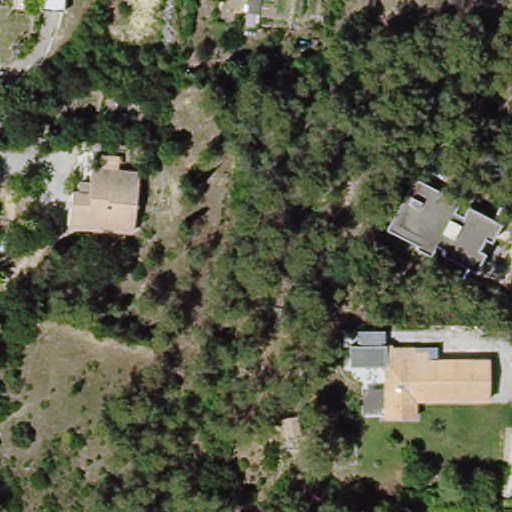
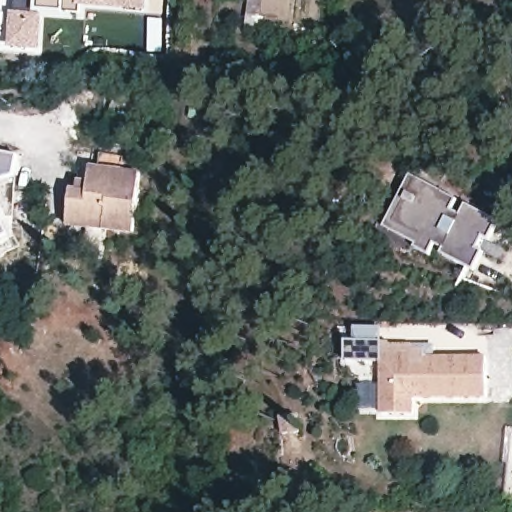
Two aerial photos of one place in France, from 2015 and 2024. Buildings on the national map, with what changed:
new [(80,6),(78,11),(65,9),(64,14),(41,12),(40,52),(8,50),(10,15),(15,14),(16,0),(147,0),(146,10),(80,6)]
demolished [(37,9),(37,0),(62,0),(61,10),(37,9)]
unchanged [(212,1),(211,24),(203,24),(205,0),(212,1)]
unchanged [(213,0),(228,0),(227,2),(212,1),(213,0)]
unchanged [(245,14),(247,0),(260,0),(258,14),(245,14)]
new [(19,157),(15,178),(0,182),(0,154),(19,157)]
unchanged [(67,215),(70,189),(75,189),(77,179),(87,181),(90,166),(137,172),(129,232),(101,229),(67,225),(67,215)]
unchanged [(453,212),(461,215),(467,206),(498,223),(488,242),(483,239),(478,250),(482,254),(472,272),(440,255),(442,252),(434,246),(429,254),(413,249),(415,246),(384,229),(411,177),(420,182),(457,200),(453,212)]
new [(9,236),(0,240),(0,218),(9,236)]
unchanged [(505,327),(512,327),(512,343),(504,343),(505,327)]
unchanged [(389,423),(389,371),(353,371),(353,351),(395,351),(395,352),(418,352),(418,356),(432,356),(433,364),(494,364),(495,408),(423,409),(423,423),(389,423)]

